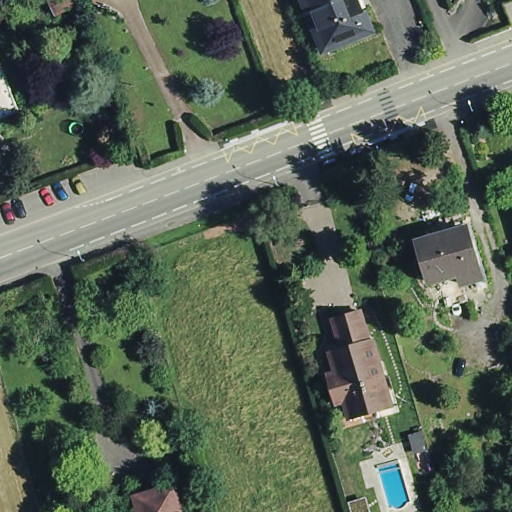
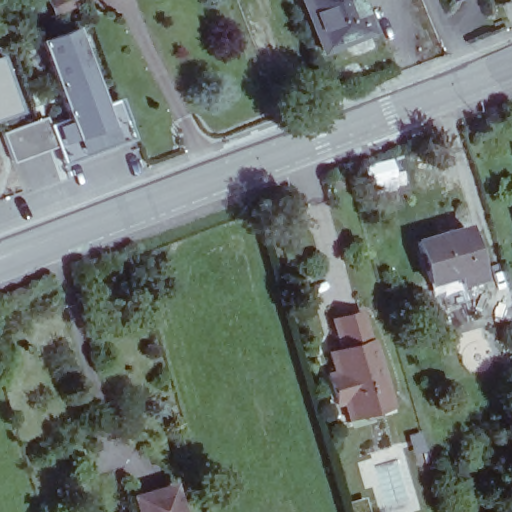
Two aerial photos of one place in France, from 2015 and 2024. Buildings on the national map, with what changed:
unchanged [(324,50),(304,0),(358,0),(371,32),(324,50)]
new [(105,104),(120,99),(135,138),(65,164),(57,146),(50,126),(68,118),(40,42),(77,28),(105,104)]
unchanged [(17,111),(13,112),(0,117),(0,64),(3,73),(17,111)]
new [(17,129),(46,117),(50,126),(57,146),(14,163),(13,160),(3,134),(17,129)]
unchanged [(447,293),(438,264),(430,266),(420,228),(466,214),(481,263),(463,268),(468,286),(447,293)]
unchanged [(333,370),(327,351),(339,347),(330,314),(357,306),(366,336),(368,335),(388,401),(367,408),(365,402),(345,408),(341,398),(335,400),(332,401),(324,372),(327,371),(333,370)]
unchanged [(133,512),(128,495),(175,480),(184,512),(133,512)]

